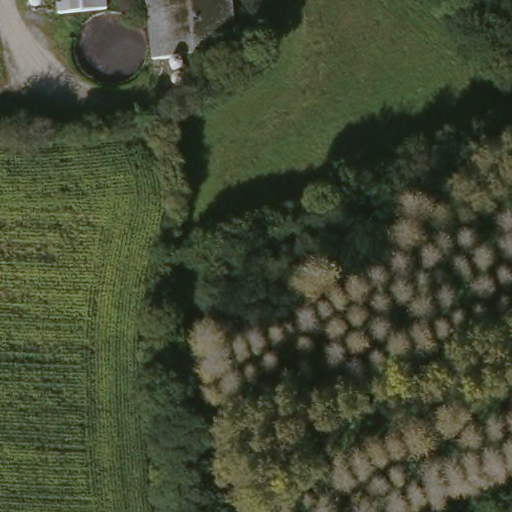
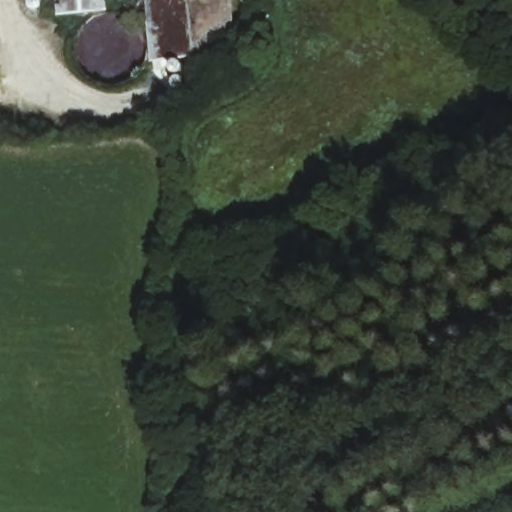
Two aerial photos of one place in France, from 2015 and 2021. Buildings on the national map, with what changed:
unchanged [(233,57),(145,67),(140,0),(228,0),(233,57)]

